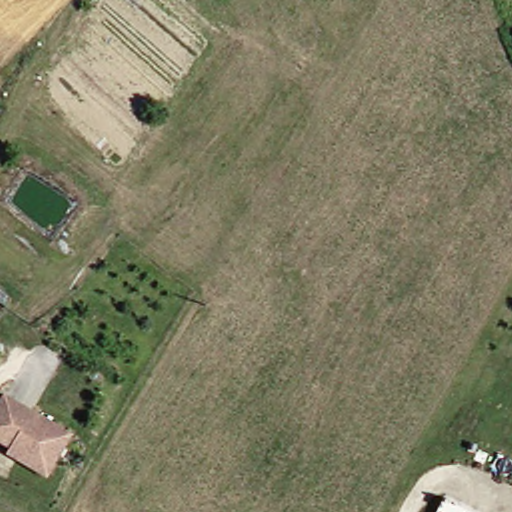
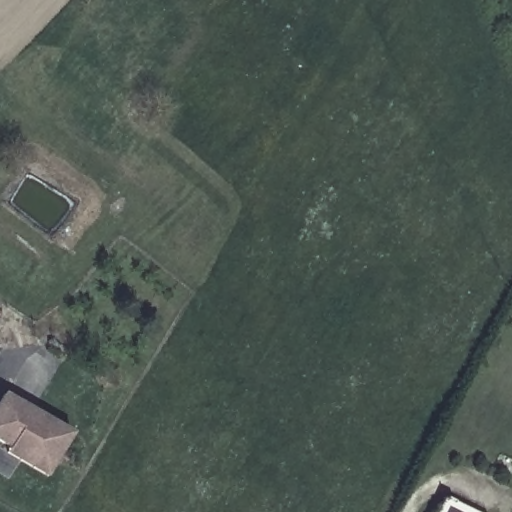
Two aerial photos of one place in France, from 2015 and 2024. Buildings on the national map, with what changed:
unchanged [(0,455),(0,452),(2,449),(0,447),(0,396),(64,437),(51,457),(38,479),(0,455)]
unchanged [(439,497),(470,512),(431,512),(439,497)]

